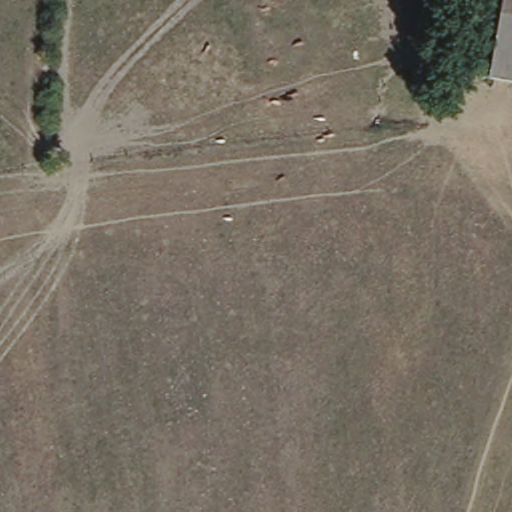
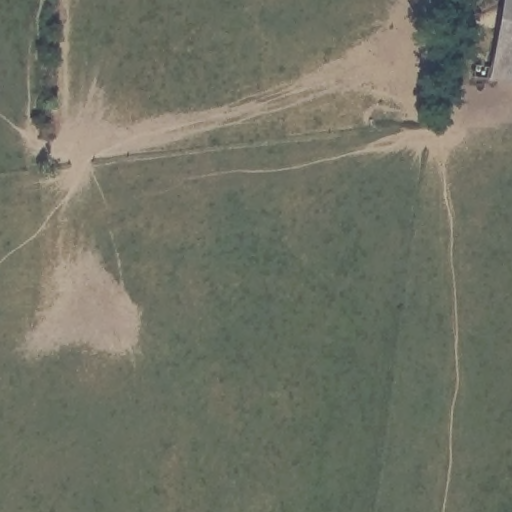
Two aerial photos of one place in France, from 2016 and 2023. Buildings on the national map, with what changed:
unchanged [(488,77),(502,0),(512,0),(512,82),(488,77)]

